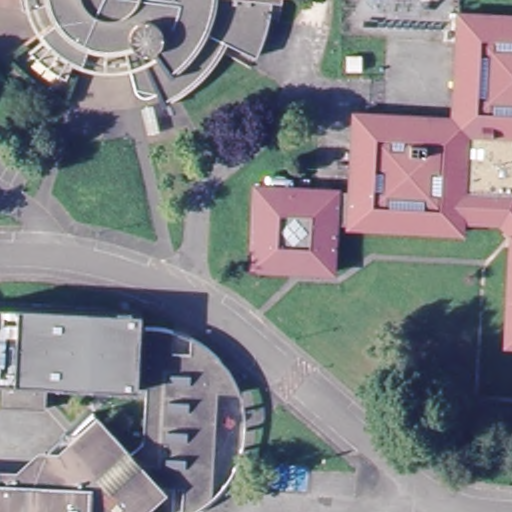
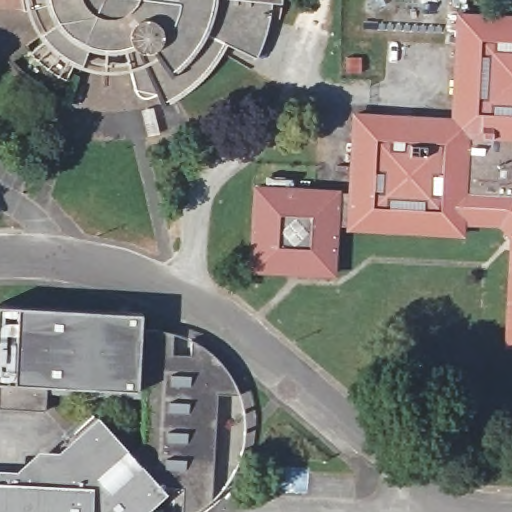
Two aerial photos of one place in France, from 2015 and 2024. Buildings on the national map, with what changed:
unchanged [(64,81),(53,75),(39,65),(31,55),(24,47),(41,35),(59,24),(57,17),(53,10),(51,6),(27,13),(24,5),(0,4),(0,0),(279,0),(278,8),(272,8),(268,26),(259,55),(255,64),(229,51),(216,70),(190,96),(170,110),(157,115),(154,102),(135,106),(122,48),(112,50),(101,49),(88,46),(83,57),(80,66),(72,63),(64,81)]
unchanged [(466,216),(465,231),(350,225),(350,220),(337,221),(335,270),(300,268),(286,268),(253,266),(258,185),(350,189),(354,112),(453,117),(459,11),(512,14),(512,242),(486,218),(466,216)]
unchanged [(512,265),(512,340),(507,340),(512,265)]
unchanged [(1,466),(2,458),(22,460),(42,444),(57,446),(102,408),(139,450),(152,438),(154,385),(54,380),(53,406),(5,405),(6,379),(0,379),(3,301),(149,307),(148,327),(152,327),(152,325),(162,325),(172,326),(182,327),(178,348),(196,350),(197,333),(217,346),(232,362),(240,376),(246,389),(223,387),(217,495),(210,501),(201,507),(190,512),(188,512),(189,483),(166,481),(132,512),(0,512),(0,478),(1,466)]

